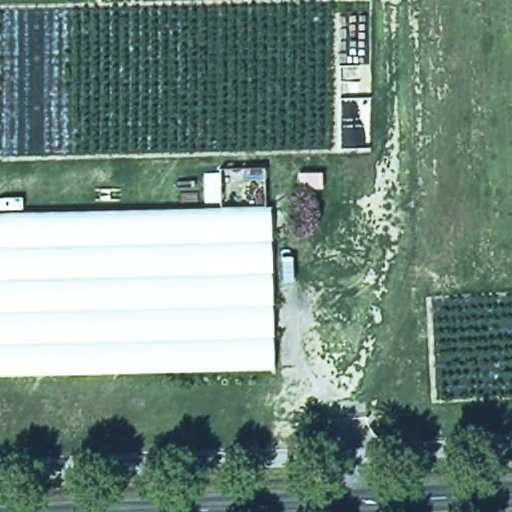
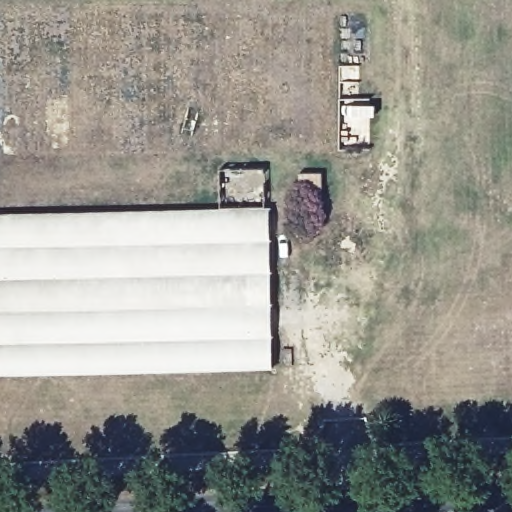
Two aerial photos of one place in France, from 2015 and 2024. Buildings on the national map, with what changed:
unchanged [(267,209),(272,369),(0,375),(0,215),(267,209)]

